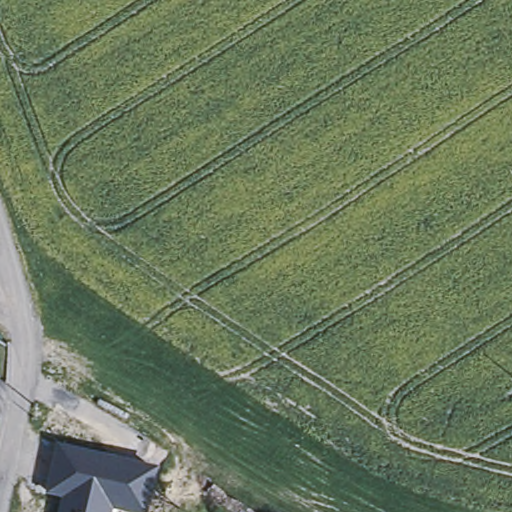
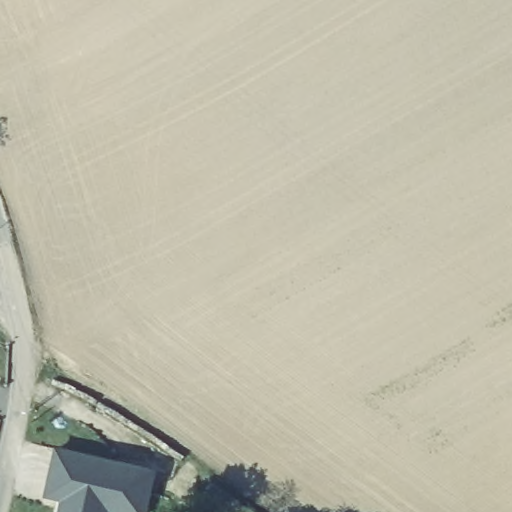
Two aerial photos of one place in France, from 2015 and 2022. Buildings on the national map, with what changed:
unchanged [(65,498),(47,494),(58,449),(110,461),(151,487),(145,512),(125,512),(110,509),(109,512),(61,512),(65,498)]

